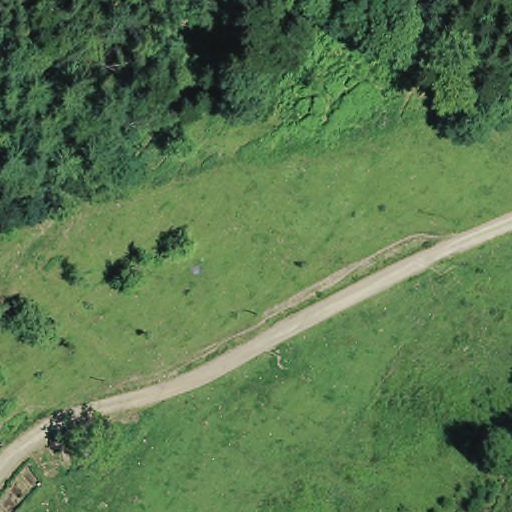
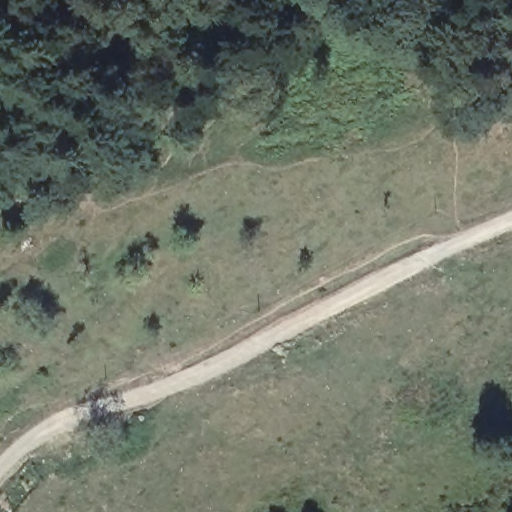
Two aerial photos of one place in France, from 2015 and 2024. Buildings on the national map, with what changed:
[]

